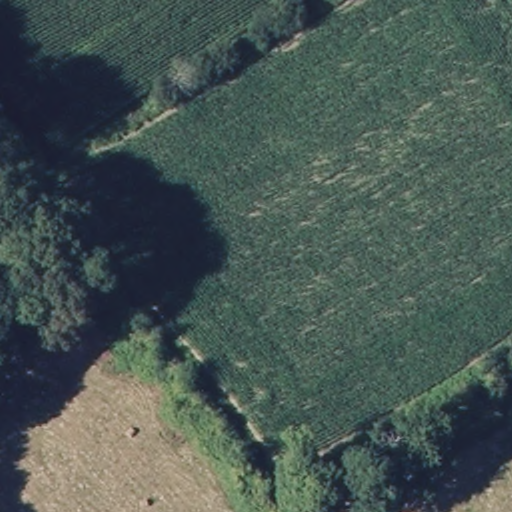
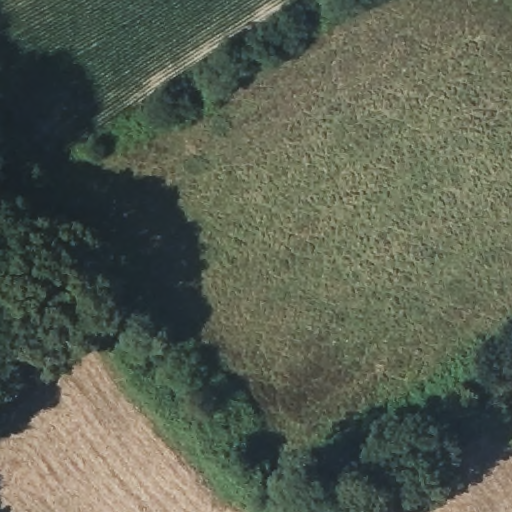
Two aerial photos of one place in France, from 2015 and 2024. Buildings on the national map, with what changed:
[]

